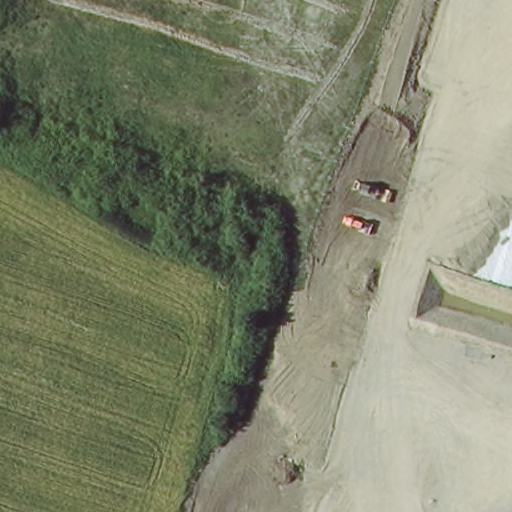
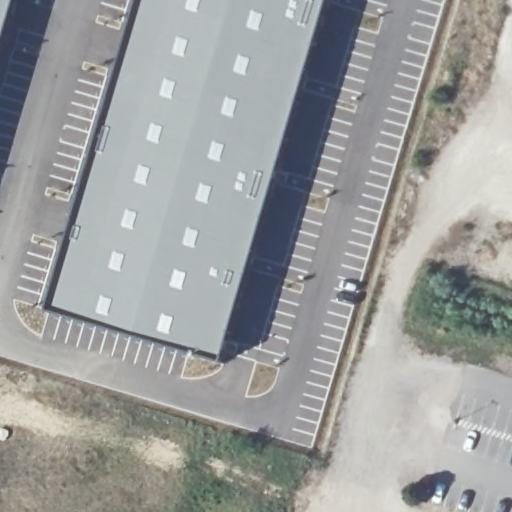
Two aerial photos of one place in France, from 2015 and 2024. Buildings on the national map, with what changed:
new [(17,0),(0,56),(0,0),(17,0)]
new [(113,109),(143,0),(330,0),(243,294),(222,359),(167,344),(83,318),(51,309),(68,249),(113,109)]

